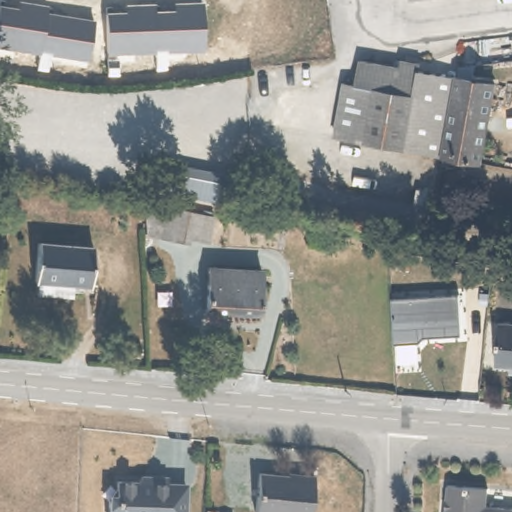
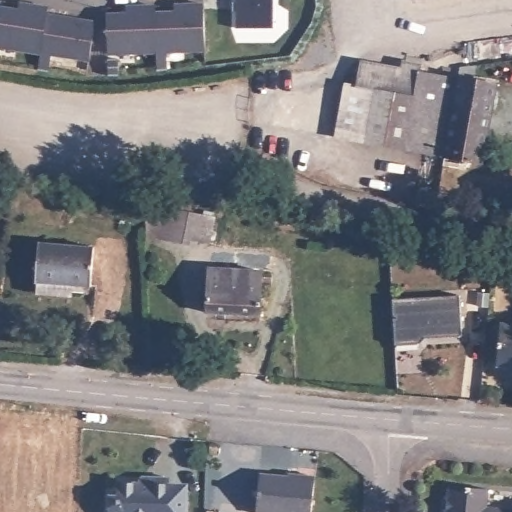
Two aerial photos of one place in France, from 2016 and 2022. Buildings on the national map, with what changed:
unchanged [(0,47),(0,11),(1,3),(20,6),(21,0),(50,5),(48,13),(95,21),(89,62),(0,47)]
new [(235,0),(273,0),(273,28),(235,28),(235,0)]
unchanged [(106,55),(105,12),(126,11),(126,4),(154,3),(155,9),(176,8),(176,3),(202,1),(204,51),(106,55)]
unchanged [(344,84),(357,86),(363,58),(499,77),(486,167),(335,136),(344,84)]
unchanged [(223,205),(171,194),(177,164),(226,173),(223,205)]
unchanged [(161,201),(219,213),(212,249),(154,234),(161,201)]
unchanged [(39,234),(91,240),(89,275),(96,277),(94,284),(68,283),(68,288),(34,285),(39,234)]
unchanged [(215,305),(204,305),(203,262),(256,263),(258,318),(215,317),(215,305)]
unchanged [(425,335),(419,343),(394,344),(391,298),(459,296),(462,335),(425,335)]
unchanged [(512,322),(512,364),(499,363),(501,322),(512,322)]
unchanged [(252,508),(255,469),(287,473),(288,468),(317,472),(315,479),(313,511),(252,508)]
unchanged [(183,488),(182,512),(105,512),(106,499),(113,499),(113,480),(134,481),(137,475),(151,475),(165,476),(164,487),(183,488)]
unchanged [(479,512),(438,512),(440,488),(479,492),(479,512)]

